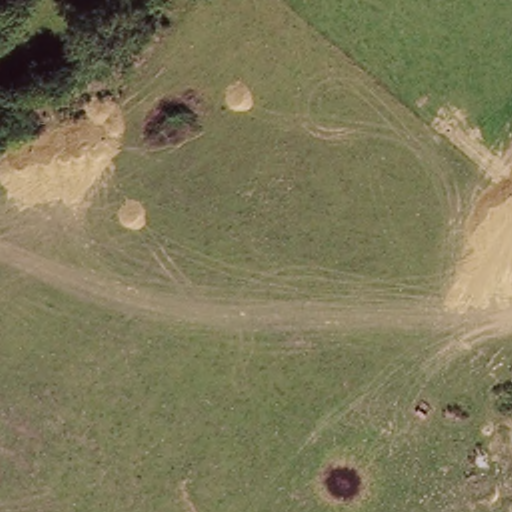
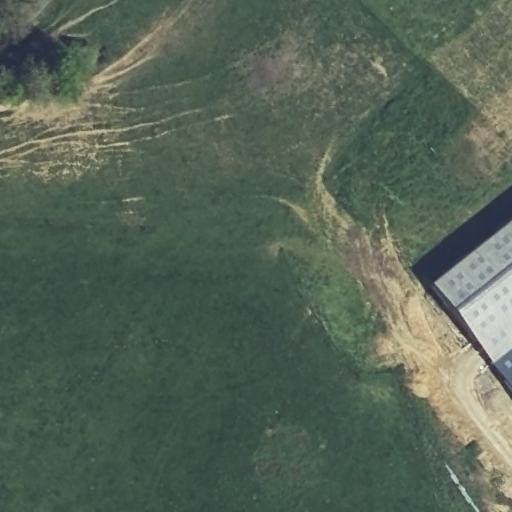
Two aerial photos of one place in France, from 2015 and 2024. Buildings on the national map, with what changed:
new [(490,364),(427,285),(512,219),(512,347),(490,364)]

